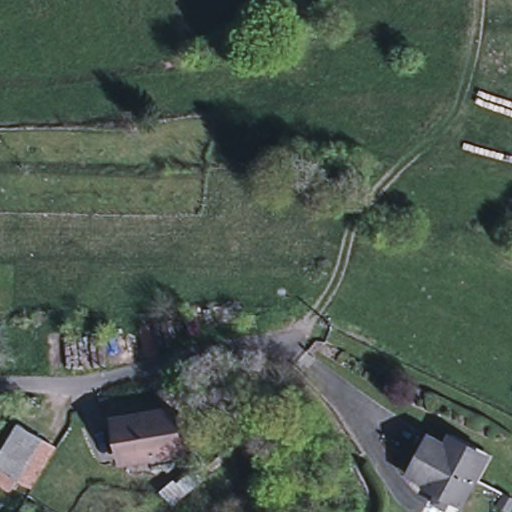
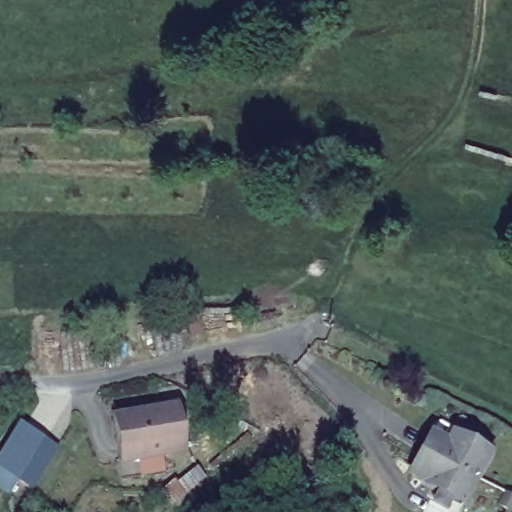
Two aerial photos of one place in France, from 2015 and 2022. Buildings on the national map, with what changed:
unchanged [(235,245),(234,256),(202,256),(202,244),(235,245)]
unchanged [(175,409),(182,451),(125,461),(117,419),(175,409)]
unchanged [(11,489),(0,482),(0,453),(18,423),(43,438),(11,489)]
unchanged [(433,502),(439,490),(426,484),(427,482),(411,473),(431,437),(447,445),(451,437),(487,456),(462,503),(453,498),(447,509),(433,502)]
unchanged [(512,496),(512,509),(510,512),(498,505),(505,493),(512,496)]

